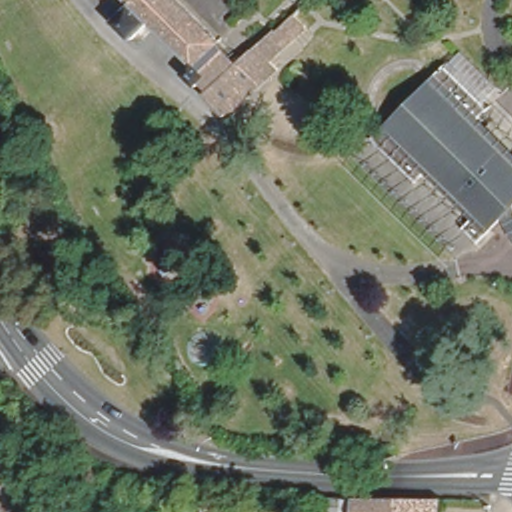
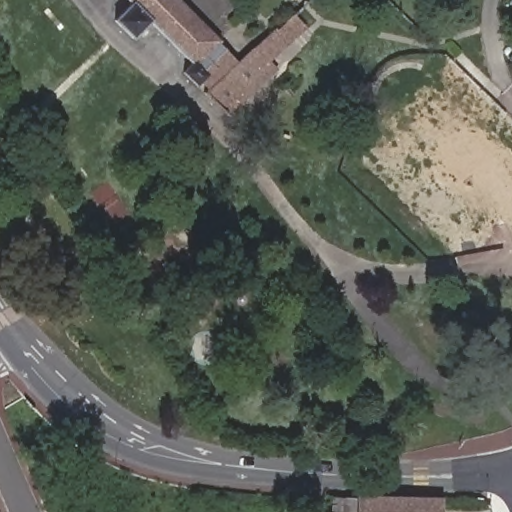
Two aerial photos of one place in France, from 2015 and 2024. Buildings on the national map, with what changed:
unchanged [(222,48),(207,61),(214,68),(193,87),(181,74),(189,66),(147,26),(128,43),(109,25),(126,7),(119,0),(173,0),(222,48)]
unchanged [(201,95),(270,31),(272,33),(291,15),(303,28),(263,65),(270,72),(222,118),(201,95)]
demolished [(371,143),(397,113),(435,70),(442,76),(448,82),(482,111),(474,121),(468,127),(512,167),(512,209),(490,233),(483,241),(467,227),(475,218),(478,214),(428,170),(427,173),(417,183),(371,143)]
unchanged [(436,512),(352,512),(352,498),(436,501),(436,512)]
unchanged [(345,508),(345,512),(333,512),(334,507),(345,508)]

